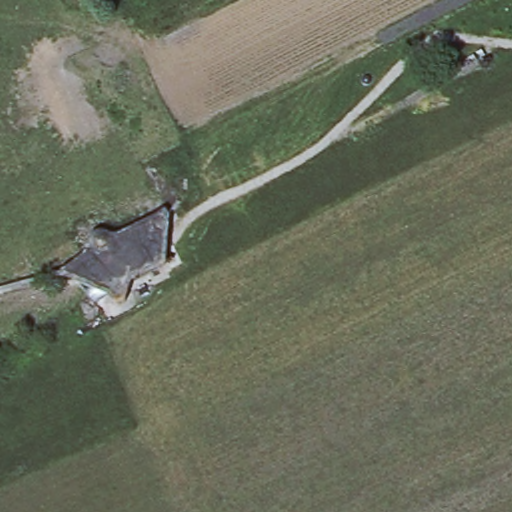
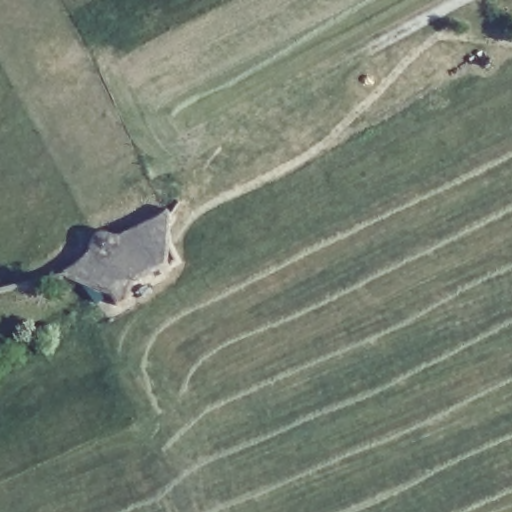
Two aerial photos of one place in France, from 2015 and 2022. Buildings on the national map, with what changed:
unchanged [(116,299),(61,272),(93,240),(167,210),(163,263),(116,299)]

